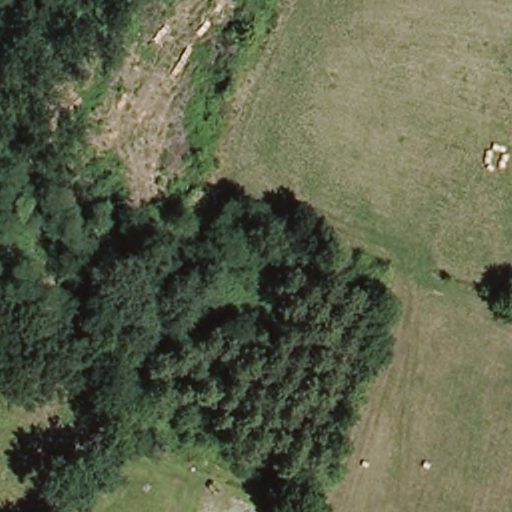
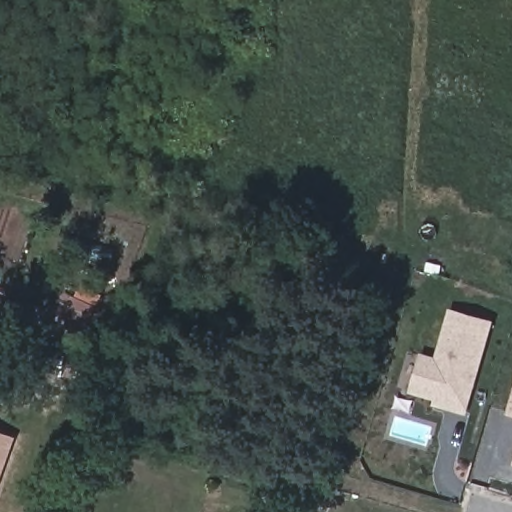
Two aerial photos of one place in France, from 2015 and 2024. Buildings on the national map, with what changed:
new [(465,416),(430,407),(433,400),(408,393),(419,354),(434,359),(448,311),(492,323),(465,416)]
new [(506,416),(512,393),(512,418),(506,416)]
new [(0,431),(16,436),(0,483),(0,431)]
new [(510,464),(512,460),(512,464),(510,464)]

